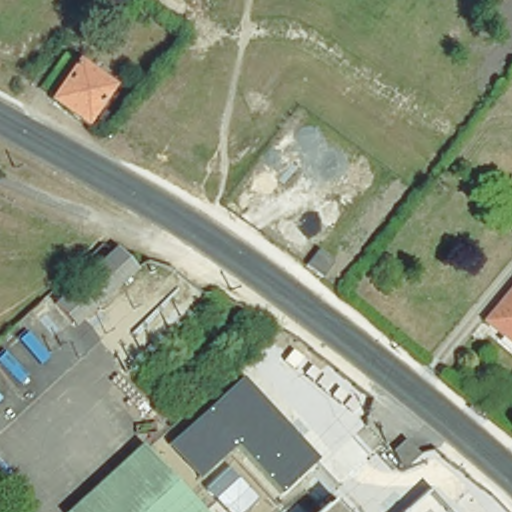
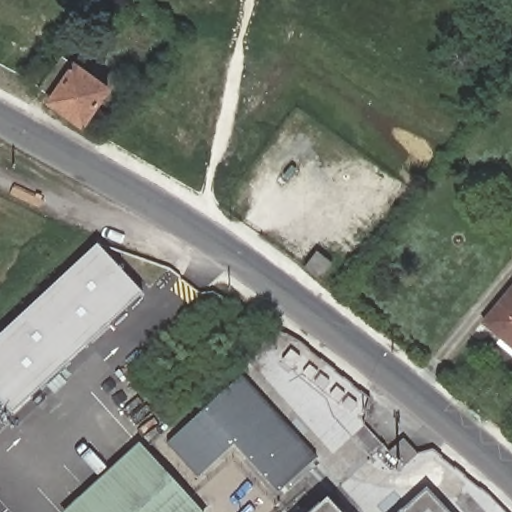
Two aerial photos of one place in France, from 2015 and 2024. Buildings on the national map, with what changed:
unchanged [(67,62),(93,81),(91,85),(109,99),(87,129),(54,107),(56,105),(44,96),(67,62)]
new [(0,402),(0,338),(99,247),(142,294),(12,415),(0,402)]
demolished [(137,272),(79,326),(57,304),(117,249),(137,272)]
unchanged [(315,278),(302,266),(315,250),(329,261),(315,278)]
unchanged [(512,280),(512,348),(478,320),(512,280)]
unchanged [(198,305),(204,299),(210,305),(204,310),(198,305)]
unchanged [(171,432),(239,371),(314,453),(277,486),(234,437),(202,466),(171,432)]
unchanged [(399,468),(384,454),(399,438),(415,452),(399,468)]
unchanged [(206,511),(205,512),(70,512),(144,443),(147,447),(205,510),(206,511)]
unchanged [(334,512),(319,512),(327,505),(334,512)]

